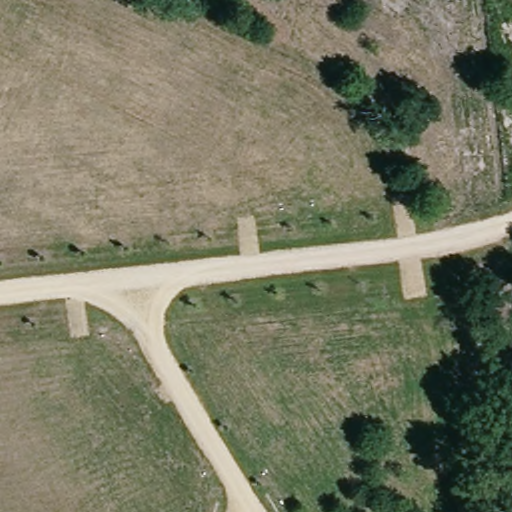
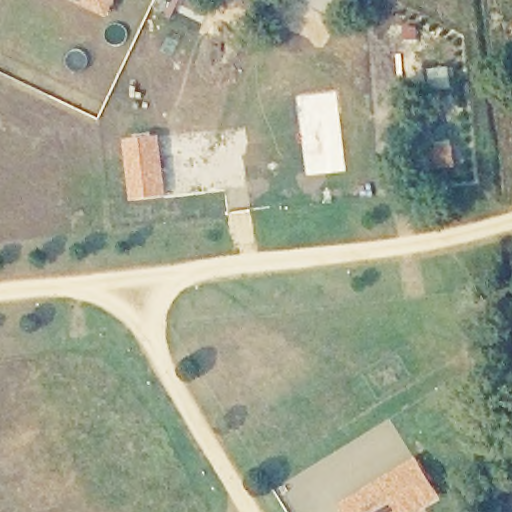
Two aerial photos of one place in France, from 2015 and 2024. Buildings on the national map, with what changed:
new [(70,0),(116,0),(107,16),(70,0)]
new [(160,135),(167,197),(127,201),(121,139),(160,135)]
new [(442,499),(421,512),(342,512),(338,508),(415,459),(442,499)]

